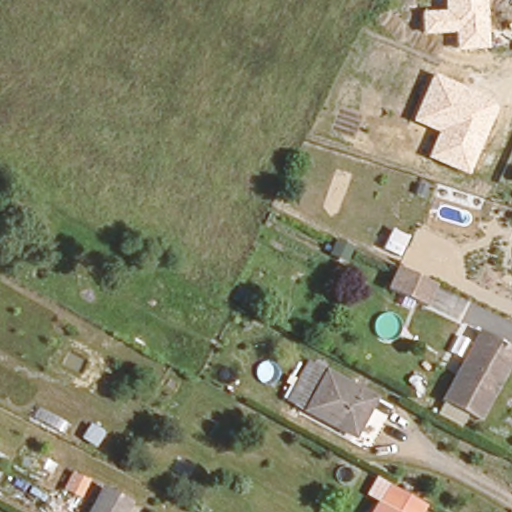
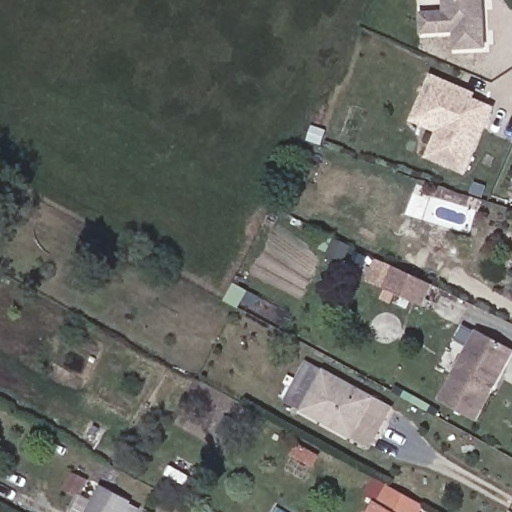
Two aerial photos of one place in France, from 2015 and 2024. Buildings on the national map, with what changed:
unchanged [(420,13),(444,11),(443,0),(485,0),(487,50),(455,51),(454,33),(421,35),(420,13)]
unchanged [(410,122),(431,75),(477,93),(476,98),(496,106),(467,176),(426,159),(437,133),(410,122)]
unchanged [(329,266),(311,257),(317,245),(335,254),(329,266)]
unchanged [(415,314),(373,292),(380,277),(383,271),(426,291),(423,299),(415,314)]
unchanged [(504,349),(471,419),(433,401),(466,331),(504,349)]
unchanged [(308,364),(374,397),(354,436),(288,404),(308,364)]
unchanged [(127,512),(87,512),(100,485),(132,502),(127,512)]
unchanged [(380,505),(381,506),(392,489),(426,506),(423,512),(376,512),(380,505)]

